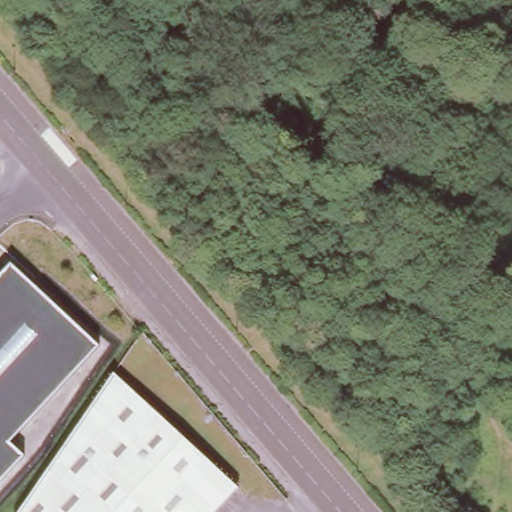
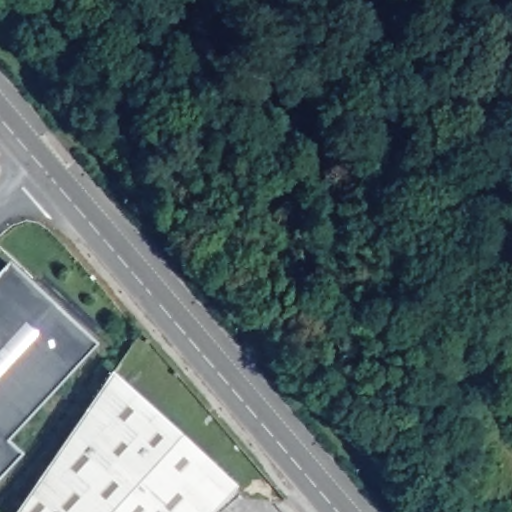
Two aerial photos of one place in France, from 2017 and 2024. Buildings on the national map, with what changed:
unchanged [(5,446),(18,458),(0,478),(0,273),(6,266),(95,347),(5,446)]
unchanged [(116,373),(237,486),(213,512),(19,512),(116,373)]

